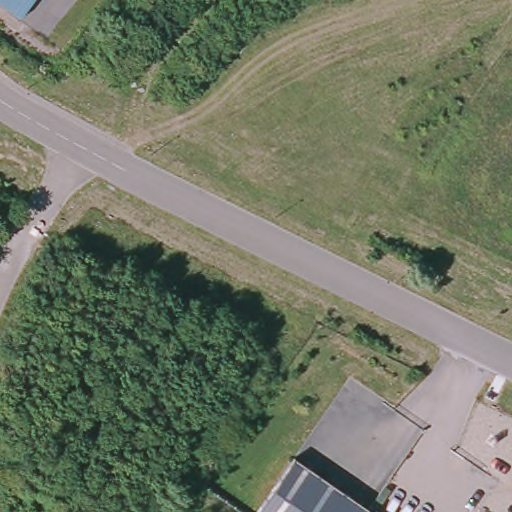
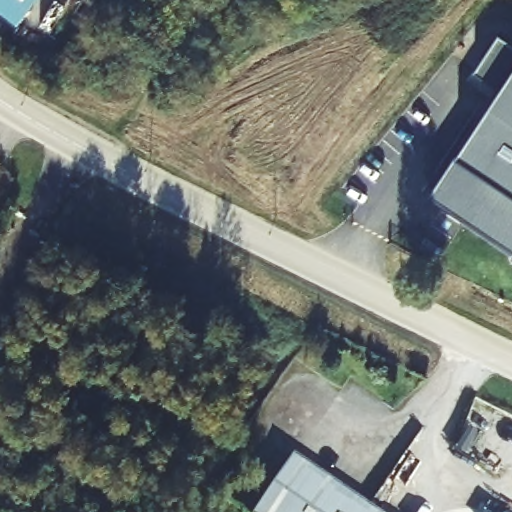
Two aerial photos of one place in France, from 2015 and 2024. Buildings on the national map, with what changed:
unchanged [(0,4),(0,0),(32,0),(20,18),(0,4)]
new [(500,84),(474,67),(499,30),(512,38),(512,245),(430,190),(500,84)]
unchanged [(365,512),(255,512),(292,458),(367,510),(365,512)]
unchanged [(369,512),(365,512),(367,510),(369,512)]

